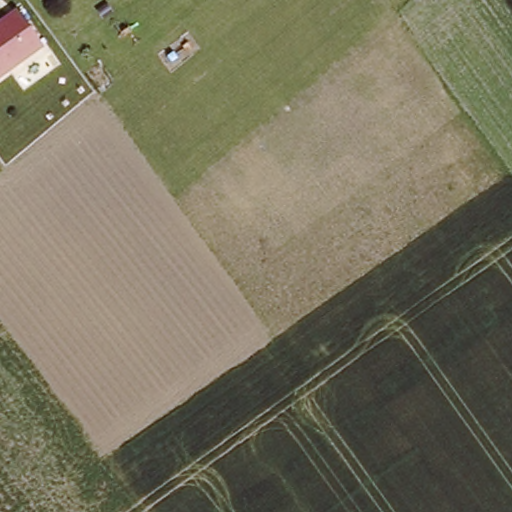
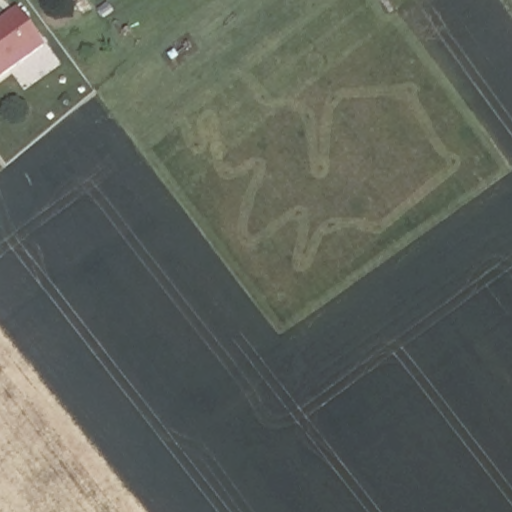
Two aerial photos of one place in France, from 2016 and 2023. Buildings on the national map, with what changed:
unchanged [(0,79),(0,22),(16,10),(44,46),(0,79)]

